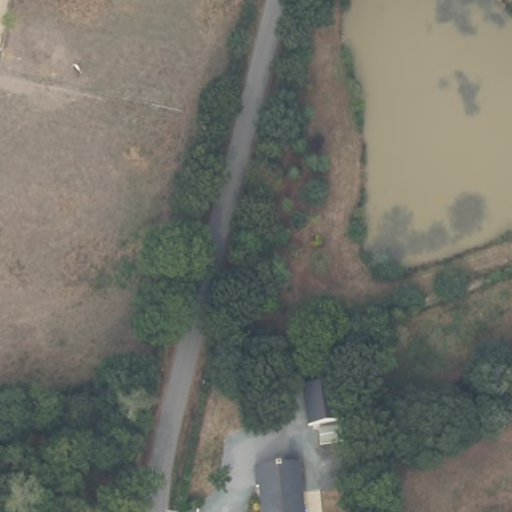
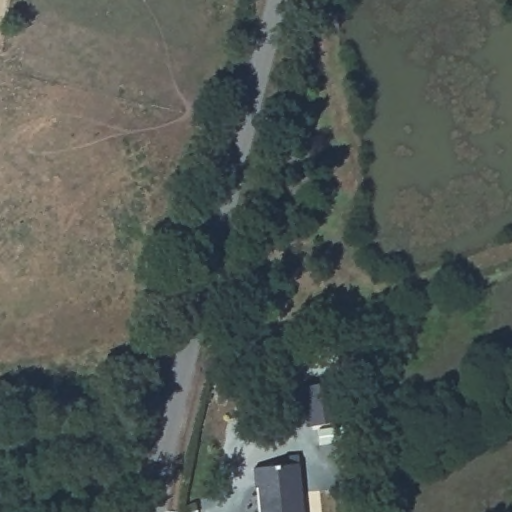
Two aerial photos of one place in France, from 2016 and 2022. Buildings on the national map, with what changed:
unchanged [(335,373),(343,413),(308,419),(301,379),(335,373)]
unchanged [(349,417),(351,431),(322,437),(320,423),(349,417)]
unchanged [(257,487),(254,487),(251,468),(283,464),(282,456),(295,454),(296,462),(303,512),(261,512),(257,487)]

